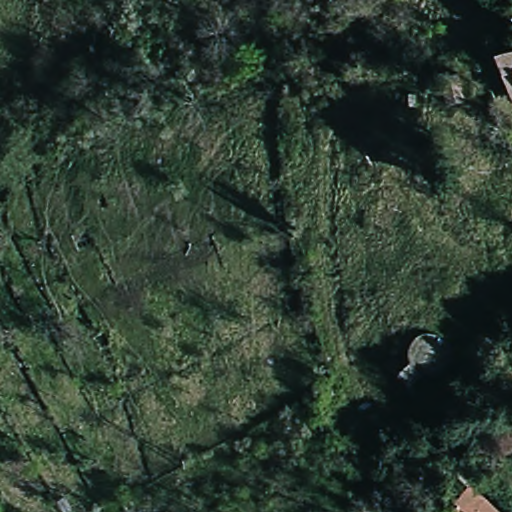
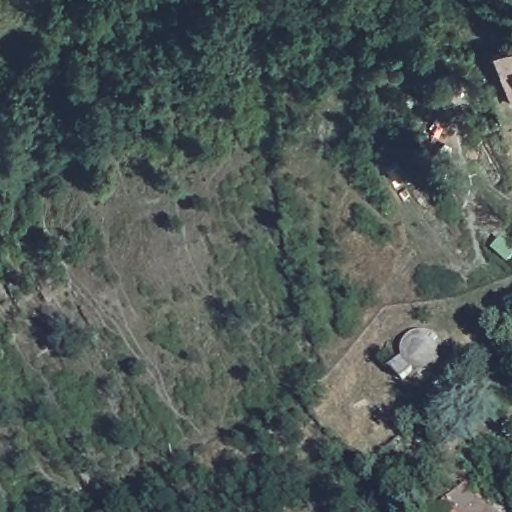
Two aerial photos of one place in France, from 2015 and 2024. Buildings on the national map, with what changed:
unchanged [(491,54),(512,47),(512,105),(491,54)]
unchanged [(418,511),(434,490),(448,500),(457,489),(485,512),(419,512),(418,511)]

